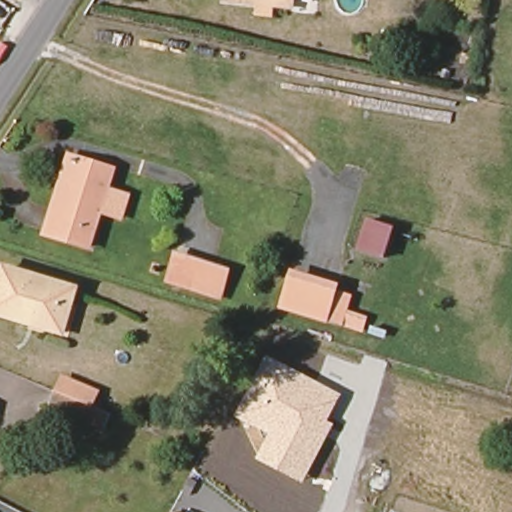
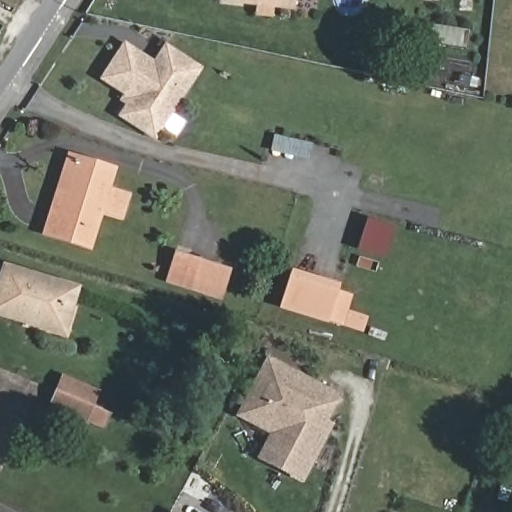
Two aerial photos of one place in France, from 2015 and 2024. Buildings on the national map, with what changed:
unchanged [(229,0),(294,0),(293,9),(229,0)]
new [(156,141),(118,116),(126,104),(119,100),(123,95),(99,79),(125,41),(153,60),(165,42),(204,67),(156,141)]
unchanged [(113,212),(101,209),(89,247),(44,234),(49,219),(61,179),(68,157),(114,171),(106,193),(118,196),(113,212)]
unchanged [(209,267),(201,292),(178,285),(185,261),(209,267)]
unchanged [(341,283),(339,290),(353,294),(349,310),(368,316),(363,333),(343,327),(329,323),(279,308),(292,268),(341,283)]
unchanged [(0,314),(0,290),(6,270),(74,288),(68,308),(61,332),(52,329),(0,314)]
unchanged [(256,460),(269,433),(235,417),(267,357),(343,394),(329,421),(335,423),(304,483),(256,460)]
unchanged [(94,406),(89,419),(54,405),(59,392),(94,406)]

